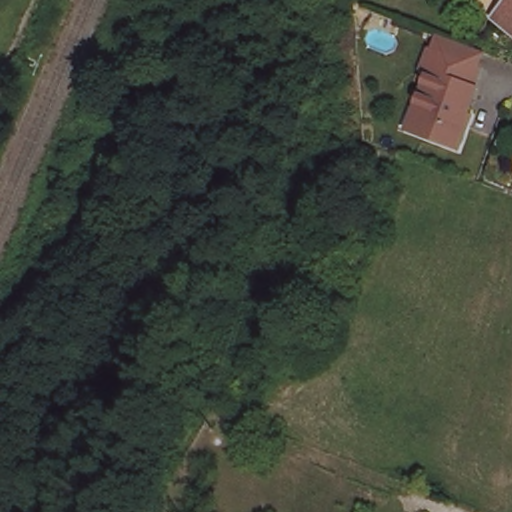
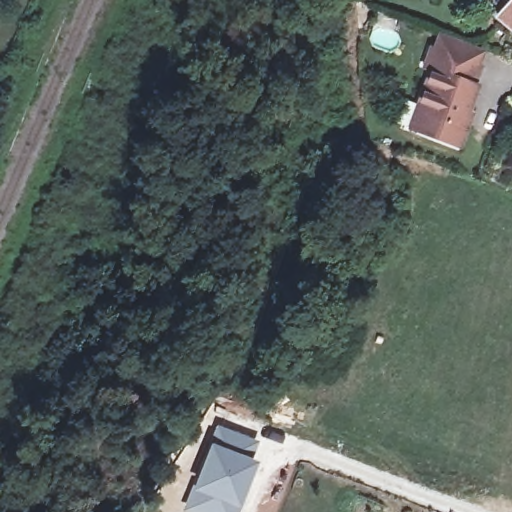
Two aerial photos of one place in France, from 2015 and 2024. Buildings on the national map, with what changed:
unchanged [(504,12),(512,2),(512,19),(504,12)]
unchanged [(417,107),(431,71),(425,68),(432,47),(434,48),(440,34),(485,51),(480,65),(481,66),(473,85),(477,87),(464,124),(467,125),(460,147),(419,132),(410,129),(417,107)]
new [(212,421),(255,437),(249,455),(253,457),(234,512),(188,512),(180,509),(212,421)]

